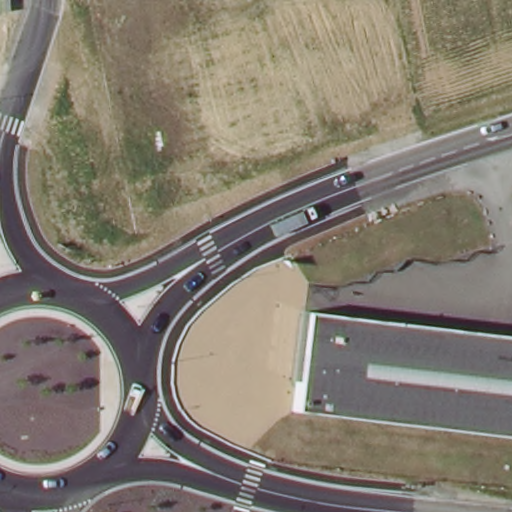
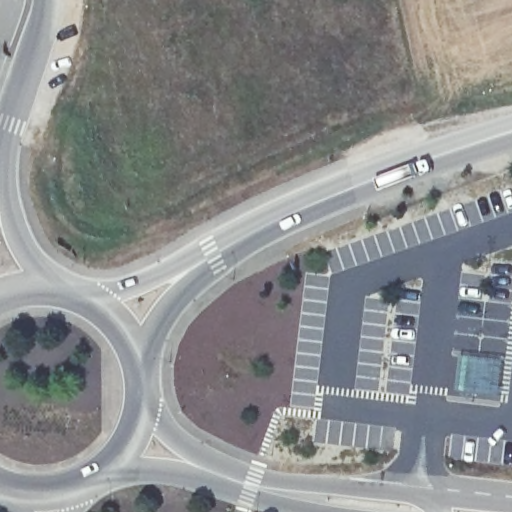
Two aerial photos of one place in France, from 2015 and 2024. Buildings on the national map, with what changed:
demolished [(512,336),(512,437),(305,417),(314,317),(512,336)]

